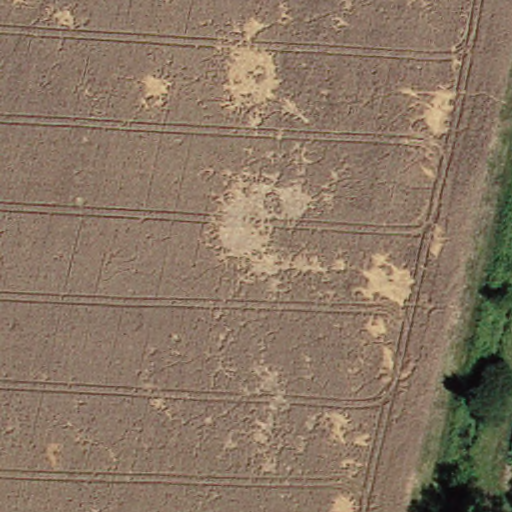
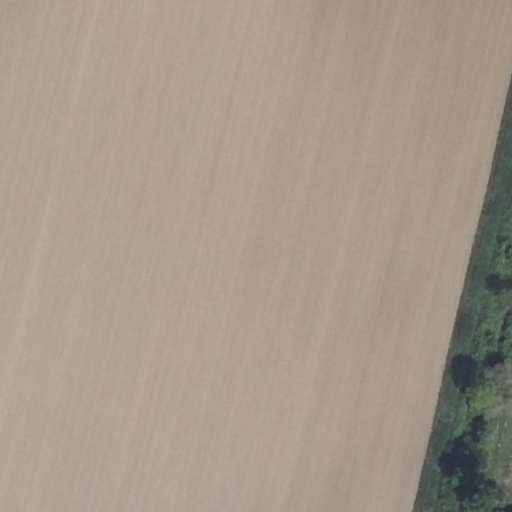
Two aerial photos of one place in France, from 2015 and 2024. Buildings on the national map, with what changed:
[]

